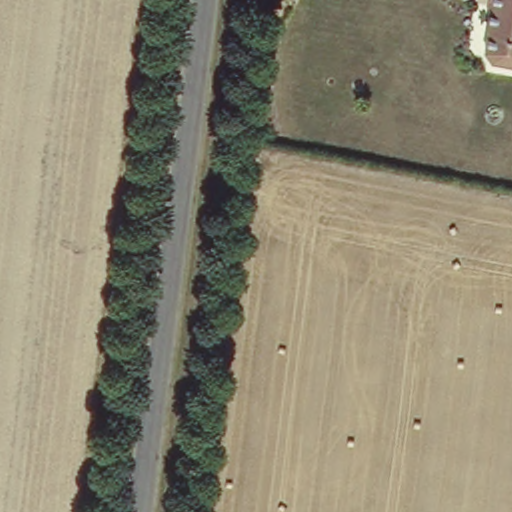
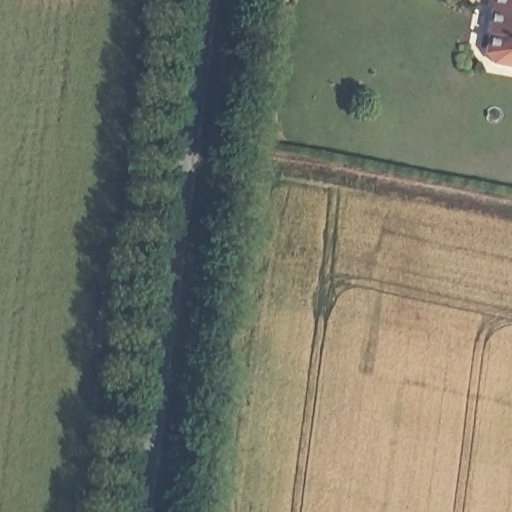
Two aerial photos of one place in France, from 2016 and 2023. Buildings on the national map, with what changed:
unchanged [(512,68),(492,64),(483,50),(491,0),(512,0),(512,68)]

